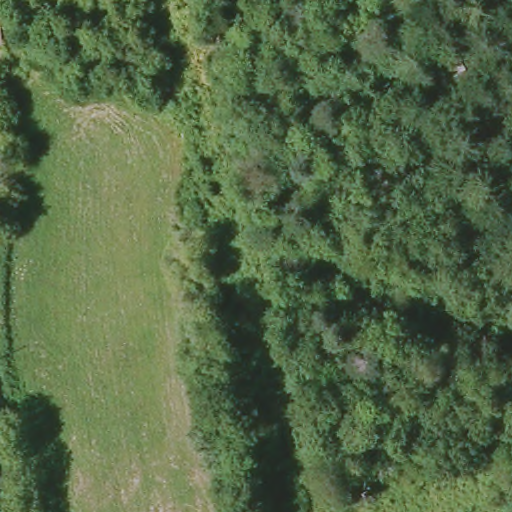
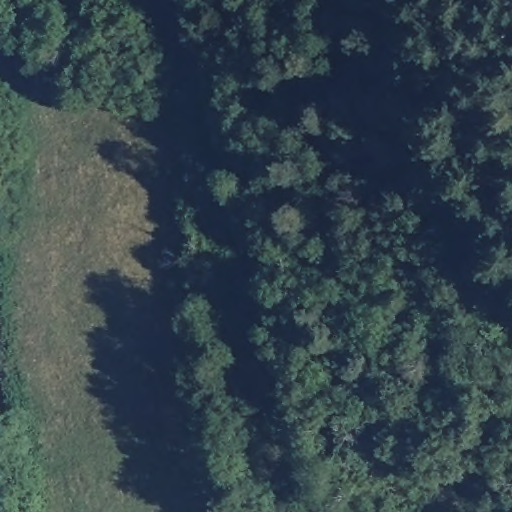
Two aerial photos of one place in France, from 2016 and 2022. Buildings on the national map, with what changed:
unchanged [(0,55),(0,49),(1,54),(0,55)]

